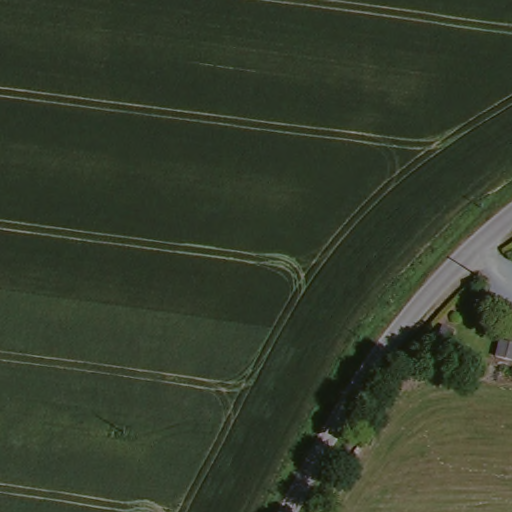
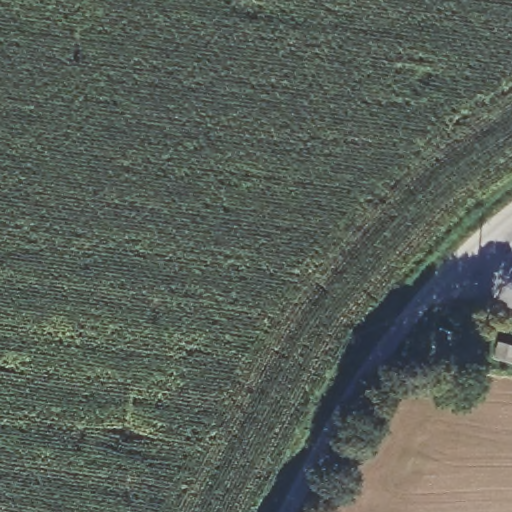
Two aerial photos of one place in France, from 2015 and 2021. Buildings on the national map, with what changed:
unchanged [(446,348),(435,342),(445,322),(457,328),(446,348)]
unchanged [(498,355),(502,335),(512,337),(512,358),(498,355)]

